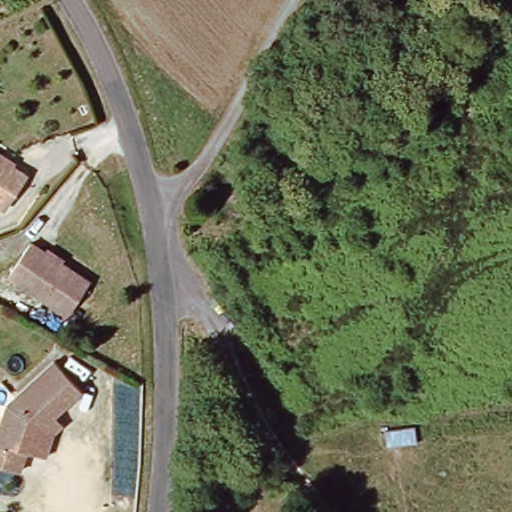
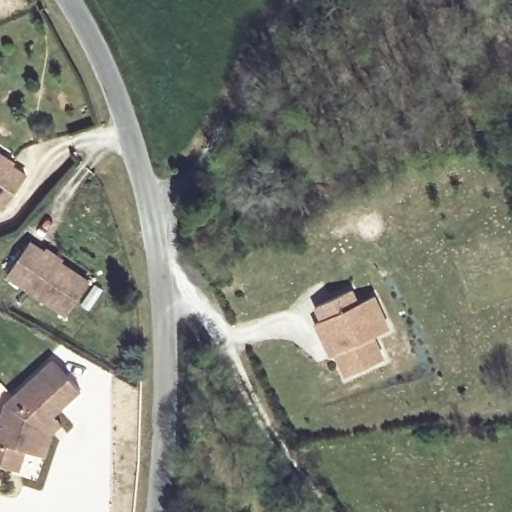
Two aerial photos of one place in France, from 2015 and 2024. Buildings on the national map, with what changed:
unchanged [(8,208),(0,203),(0,156),(30,175),(8,208)]
unchanged [(71,317),(11,279),(32,246),(91,284),(71,317)]
new [(334,353),(328,356),(314,323),(321,319),(314,304),(352,288),(359,302),(376,295),(391,329),(375,336),(386,360),(344,378),(334,353)]
unchanged [(27,448),(20,468),(0,462),(0,424),(8,402),(54,358),(82,388),(43,423),(33,450),(27,448)]

